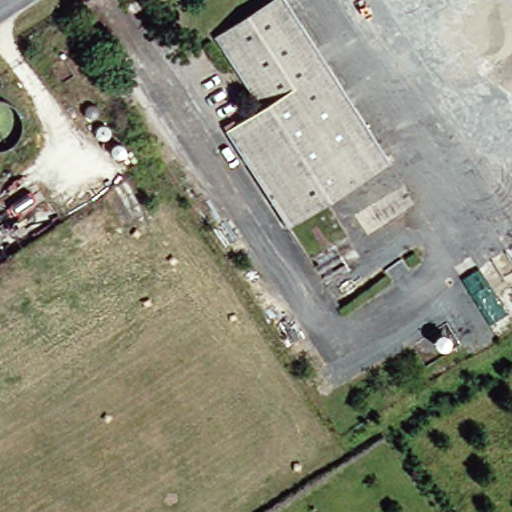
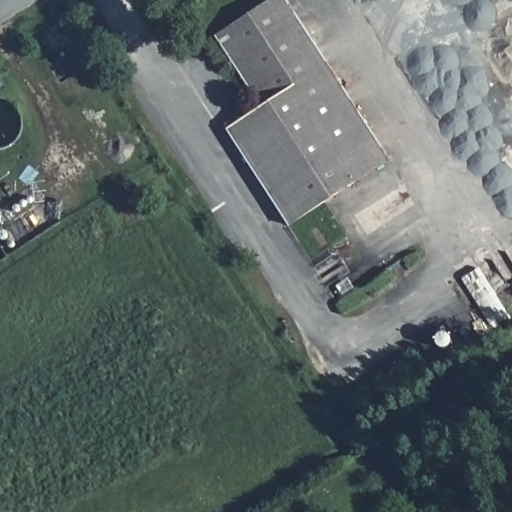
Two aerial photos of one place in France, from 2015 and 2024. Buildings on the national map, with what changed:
unchanged [(286,0),(291,0),(382,171),(273,230),(222,129),(258,109),(218,33),(286,0)]
unchanged [(0,208),(4,214),(0,217),(0,208)]

